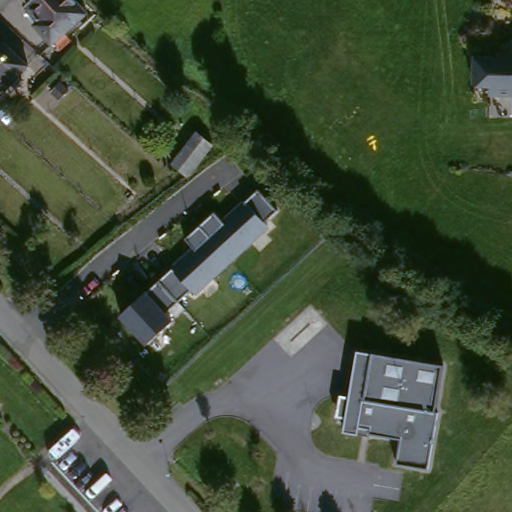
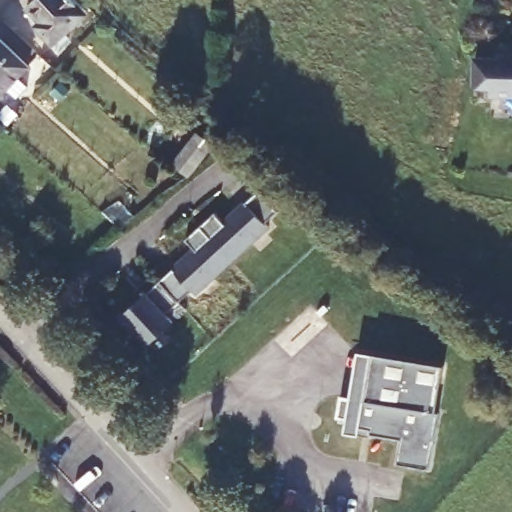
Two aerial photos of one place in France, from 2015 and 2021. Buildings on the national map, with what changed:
unchanged [(53,48),(23,16),(40,0),(66,0),(83,19),(53,48)]
unchanged [(1,47),(24,71),(0,95),(0,48),(1,47)]
unchanged [(509,100),(479,99),(480,90),(463,90),(464,61),(488,62),(488,58),(512,59),(512,104),(509,103),(509,100)]
unchanged [(169,132),(185,147),(201,133),(213,145),(168,189),(141,160),(169,132)]
unchanged [(278,210),(264,221),(270,228),(196,295),(191,289),(166,312),(173,321),(147,344),(121,315),(149,291),(194,246),(187,237),(216,212),(221,220),(246,200),(246,202),(259,190),(278,210)]
unchanged [(363,351),(435,362),(426,411),(428,411),(418,470),(386,466),(391,440),(359,435),(360,430),(339,427),(341,420),(328,418),(331,397),(354,400),(363,351)]

